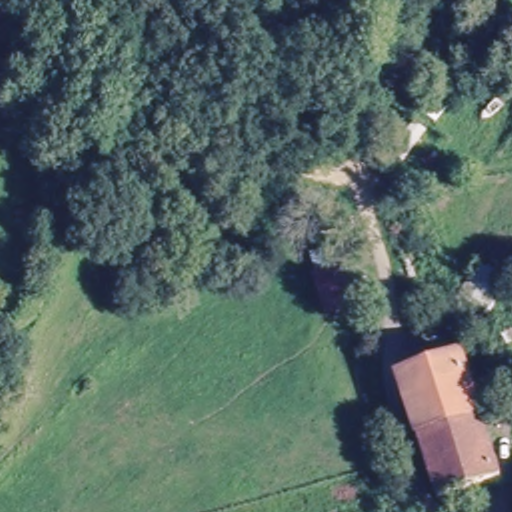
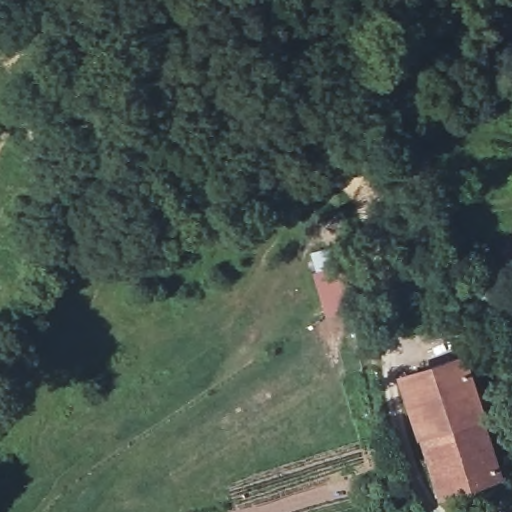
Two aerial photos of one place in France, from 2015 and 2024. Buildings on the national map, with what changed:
unchanged [(449,490),(438,494),(398,373),(402,371),(461,352),(501,472),(449,490)]

